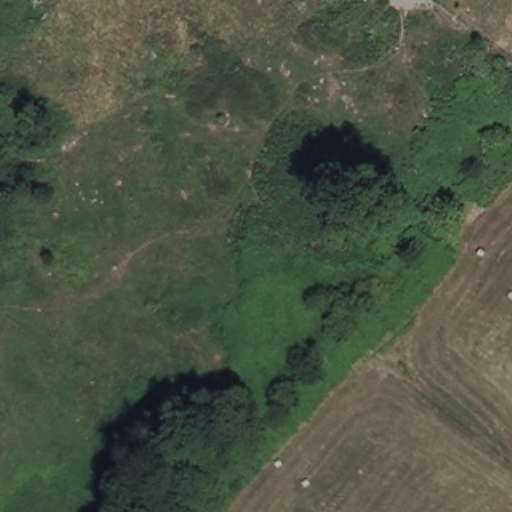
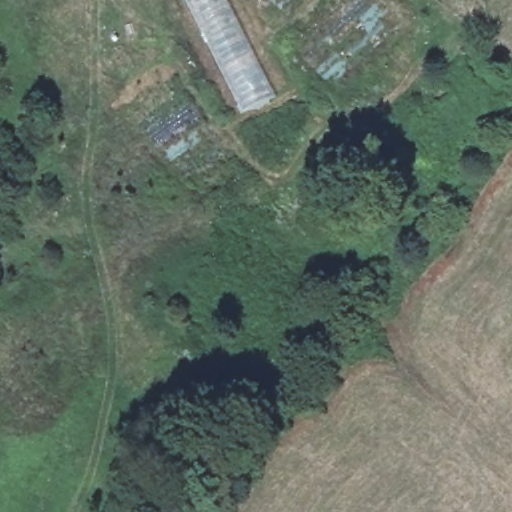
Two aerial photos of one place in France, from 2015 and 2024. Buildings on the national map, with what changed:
new [(241,112),(184,0),(228,0),(276,95),(241,112)]

